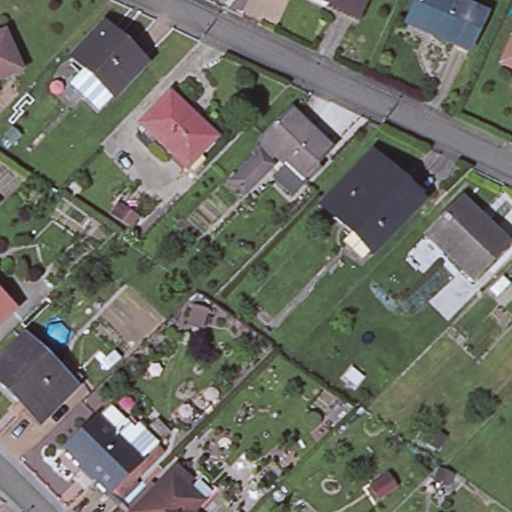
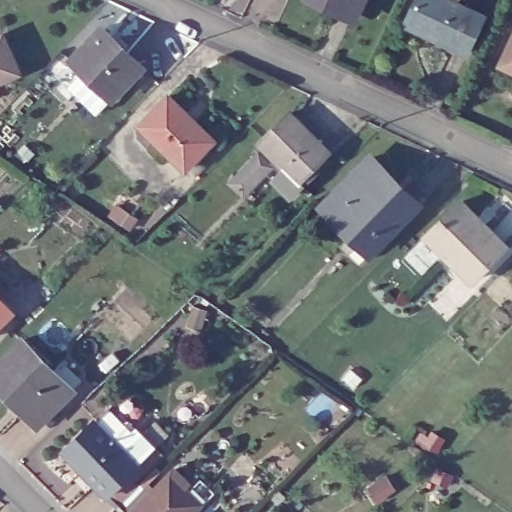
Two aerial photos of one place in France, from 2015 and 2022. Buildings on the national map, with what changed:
unchanged [(324,0),(322,5),(309,0),(356,0),(350,13),(324,0)]
unchanged [(465,54),(428,38),(430,34),(405,23),(416,0),(448,0),(483,16),(465,54)]
unchanged [(82,81),(95,68),(85,55),(114,26),(154,64),(125,94),(110,109),(82,81)]
unchanged [(24,71),(0,82),(0,34),(6,31),(24,71)]
unchanged [(502,62),(512,39),(512,67),(502,62)]
unchanged [(0,101),(0,94),(2,99),(0,101)]
unchanged [(164,94),(210,138),(181,167),(135,123),(164,94)]
unchanged [(288,161),(277,151),(273,156),(277,160),(249,190),(235,177),(259,152),(257,151),(267,141),(262,136),(292,106),(330,144),(315,160),(320,164),(305,179),(305,178),(294,189),(277,174),(288,161)]
unchanged [(344,242),(354,232),(325,204),(368,160),(402,194),(407,188),(420,200),(372,249),(362,260),(344,242)]
unchanged [(115,203),(134,215),(127,224),(108,212),(115,203)]
unchanged [(455,204),(477,225),(480,222),(503,244),(470,280),(424,237),(455,204)]
unchanged [(0,309),(5,314),(0,318),(0,309)]
unchanged [(65,366),(79,381),(70,389),(36,423),(0,387),(0,360),(20,340),(55,376),(65,366)]
unchanged [(203,508),(199,512),(120,512),(117,509),(107,499),(60,453),(90,423),(109,404),(142,438),(154,426),(167,438),(155,449),(162,457),(156,462),(171,477),(185,490),(203,508)]

